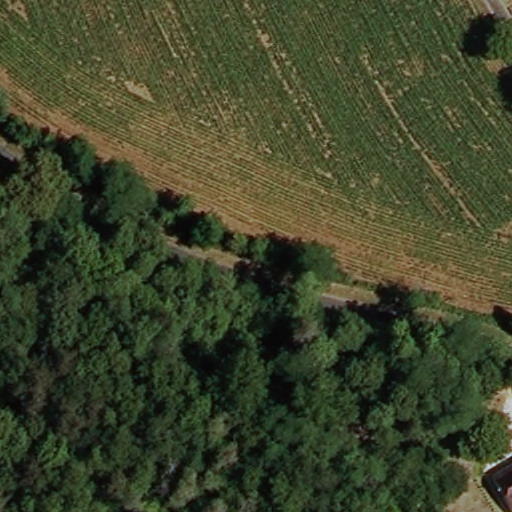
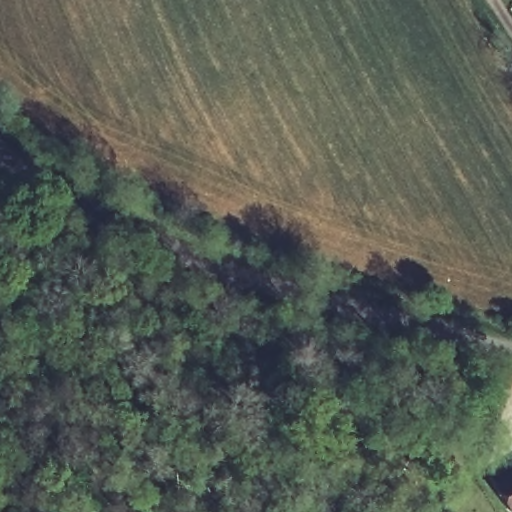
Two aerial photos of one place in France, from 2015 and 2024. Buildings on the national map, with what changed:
unchanged [(490,469),(512,458),(512,511),(503,494),(493,476),(490,469)]

